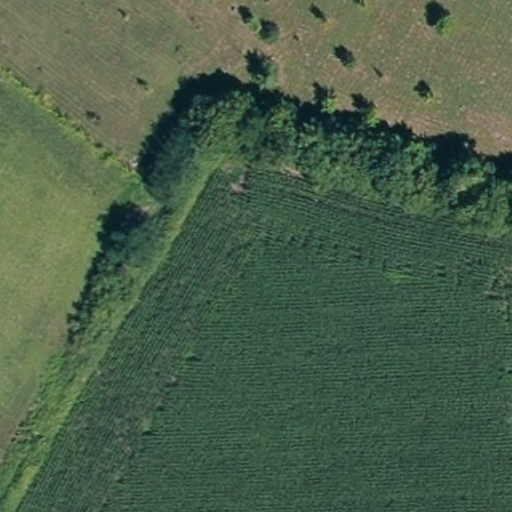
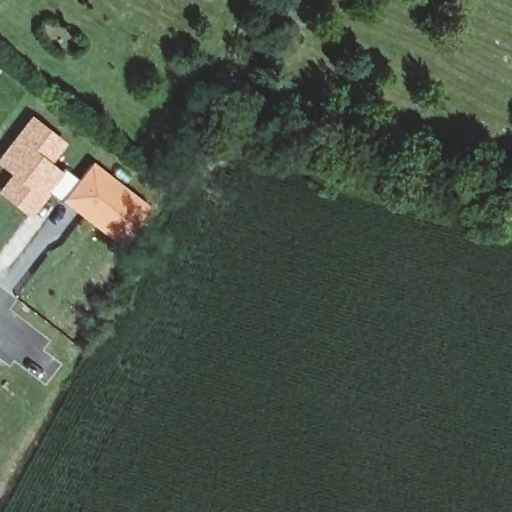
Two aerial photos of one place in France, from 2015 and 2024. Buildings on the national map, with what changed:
new [(67,141),(51,161),(78,178),(60,199),(59,200),(49,192),(30,218),(0,195),(0,186),(9,173),(0,166),(0,152),(31,114),(67,141)]
new [(78,178),(93,160),(151,206),(122,245),(60,199),(78,178)]

